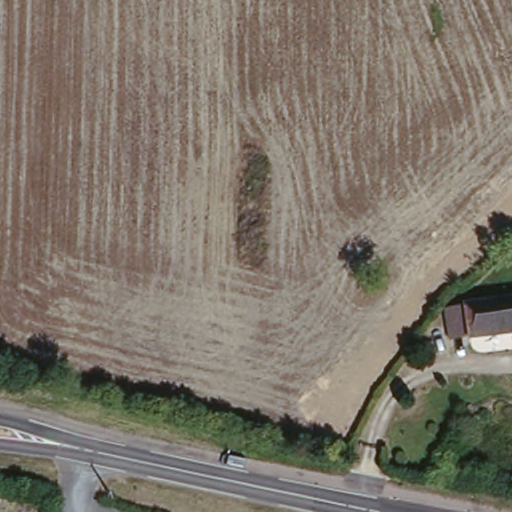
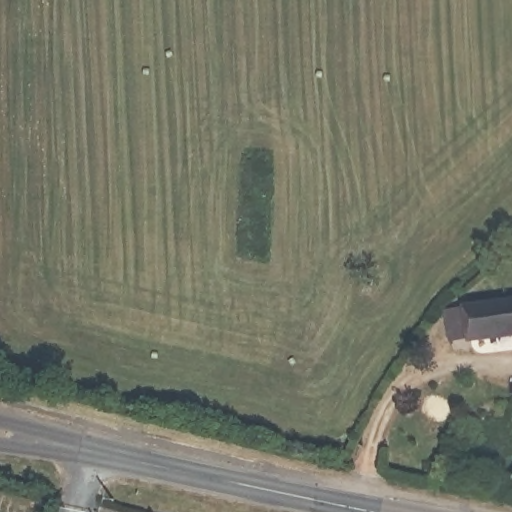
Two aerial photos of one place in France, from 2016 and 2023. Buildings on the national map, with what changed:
unchanged [(512,336),(469,341),(469,336),(450,339),(446,306),(512,297),(512,336)]

